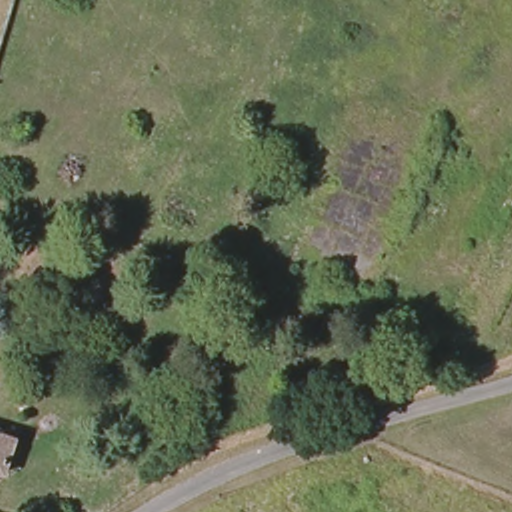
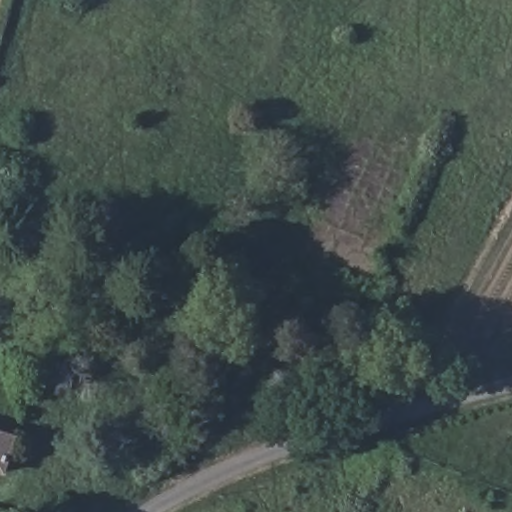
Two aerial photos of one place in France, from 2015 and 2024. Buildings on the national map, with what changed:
unchanged [(15,431),(4,467),(0,466),(0,427),(15,431)]

